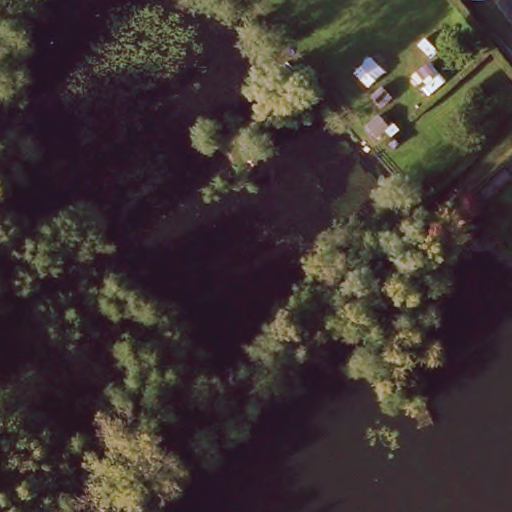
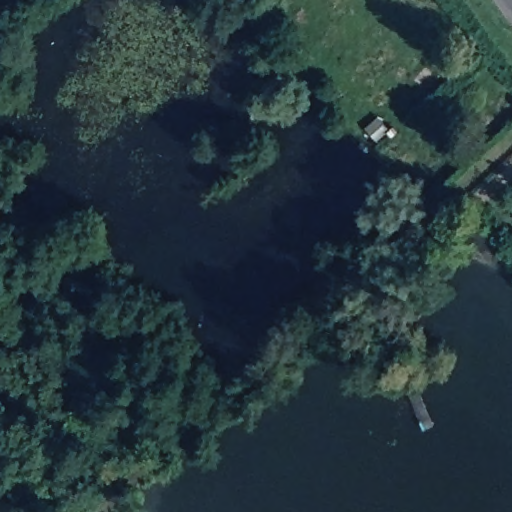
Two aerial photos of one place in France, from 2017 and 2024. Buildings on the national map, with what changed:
unchanged [(394,121),(383,130),(374,119),(384,110),(394,121)]

